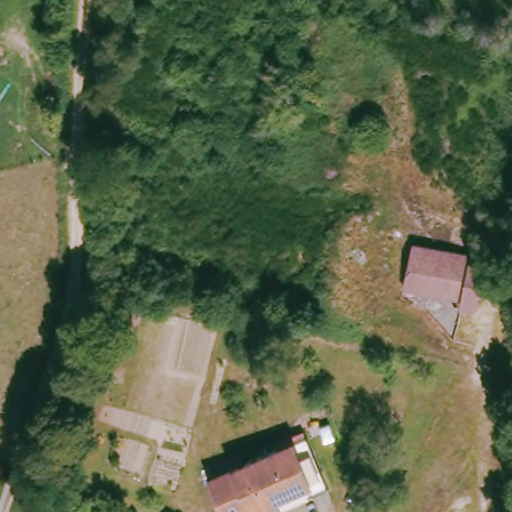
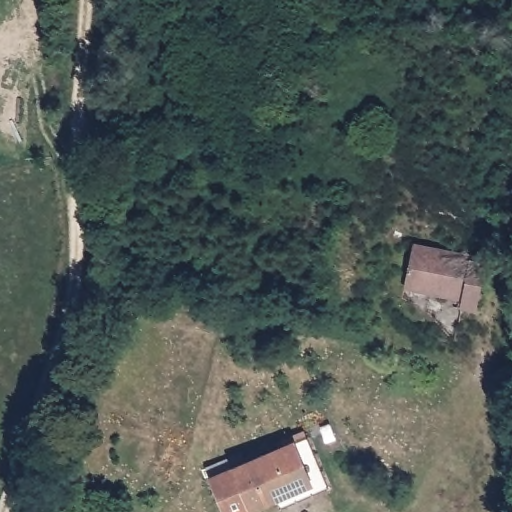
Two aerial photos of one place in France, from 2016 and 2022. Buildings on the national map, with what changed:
unchanged [(482,257),(472,304),(453,301),(455,290),(401,279),(408,239),(482,257)]
unchanged [(312,481),(292,441),(305,435),(328,487),(282,510),(276,499),(312,481)]
unchanged [(312,481),(276,499),(252,511),(227,462),(248,451),(252,459),(292,441),(312,481)]
unchanged [(252,511),(249,512),(221,512),(203,473),(227,462),(252,511)]

